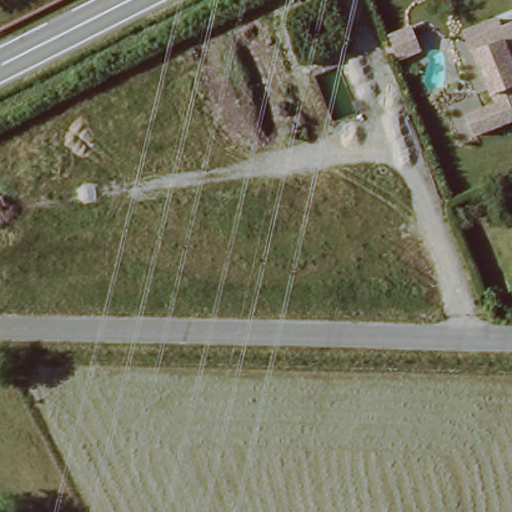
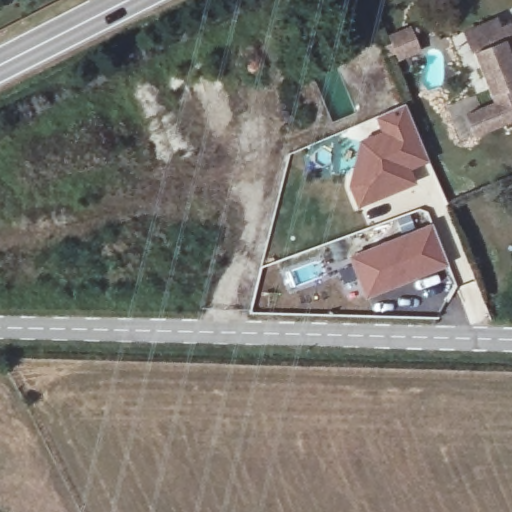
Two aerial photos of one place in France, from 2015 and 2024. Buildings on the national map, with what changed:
unchanged [(512,23),(512,57),(512,58),(512,122),(475,137),(466,117),(495,105),(474,53),(466,33),(480,27),(496,21),(500,29),(512,23)]
new [(411,24),(422,51),(396,61),(386,34),(411,24)]
new [(358,140),(377,127),(372,116),(404,101),(430,162),(412,169),(418,185),(357,209),(347,185),(358,140)]
new [(400,232),(395,218),(410,212),(415,227),(431,221),(449,267),(412,282),(365,300),(347,256),(400,232)]

